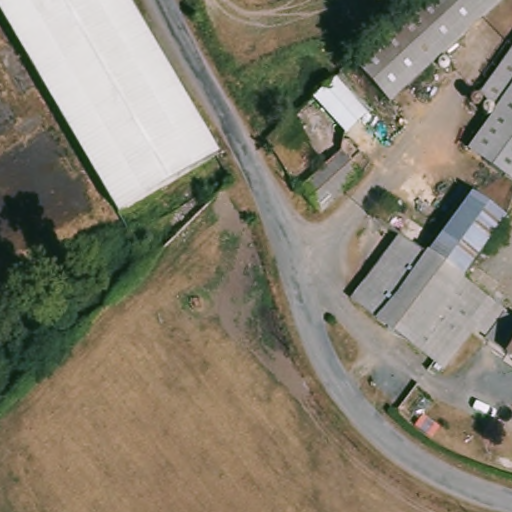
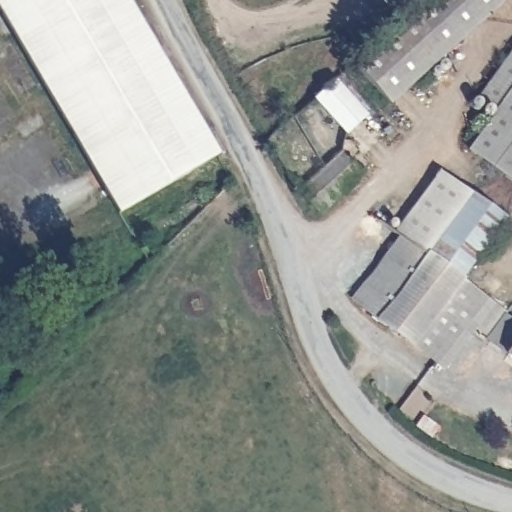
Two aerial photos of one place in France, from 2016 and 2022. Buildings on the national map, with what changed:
unchanged [(162,48),(217,144),(119,202),(1,0),(135,0),(162,48)]
unchanged [(351,68),(428,4),(434,0),(507,0),(487,17),(462,39),(382,106),(377,101),(351,68)]
unchanged [(470,104),(512,46),(512,186),(461,151),(486,117),(470,104)]
unchanged [(315,127),(322,118),(312,99),(333,83),(364,116),(332,147),(315,127)]
unchanged [(337,153),(358,178),(317,217),(298,191),(337,153)]
new [(423,254),(392,236),(438,171),(470,193),(423,254)]
unchanged [(460,282),(502,313),(483,338),(473,330),(445,373),(412,346),(375,320),(348,299),(392,236),(423,254),(470,193),(503,221),(460,282)]
unchanged [(502,313),(512,319),(512,364),(483,338),(502,313)]

